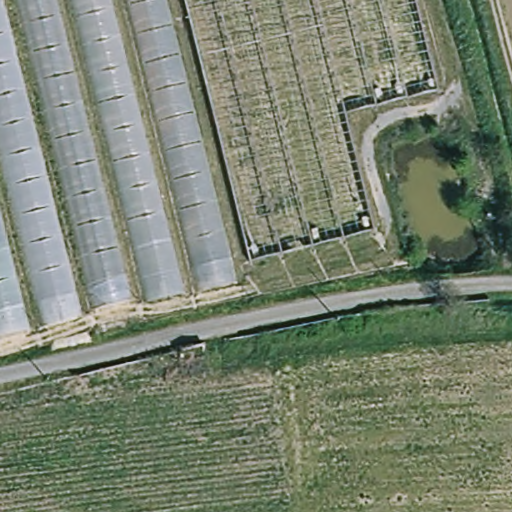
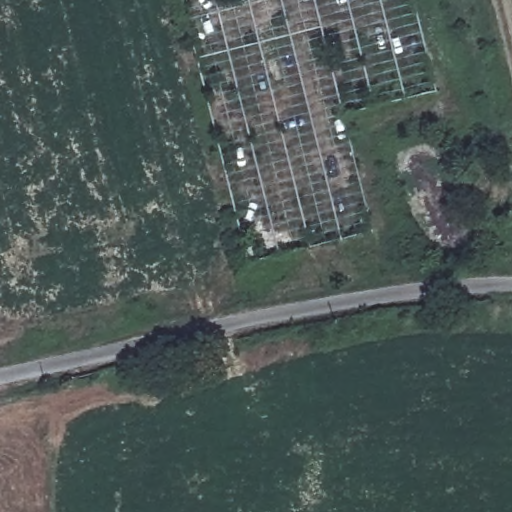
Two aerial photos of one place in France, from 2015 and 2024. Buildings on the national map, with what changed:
demolished [(232,282),(0,339),(0,0),(162,0),(232,282)]
unchanged [(442,91),(348,115),(377,232),(251,264),(185,0),(418,0),(442,91)]

